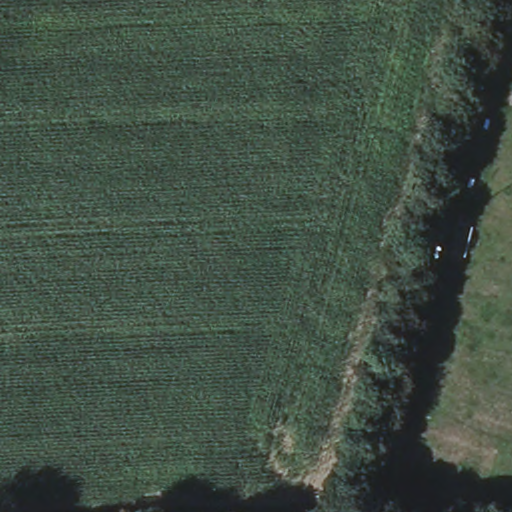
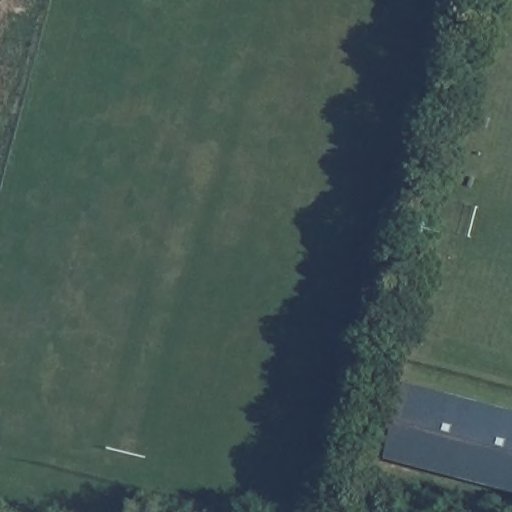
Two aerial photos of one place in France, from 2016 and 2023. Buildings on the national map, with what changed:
new [(385,472),(408,382),(512,410),(512,503),(385,472)]

